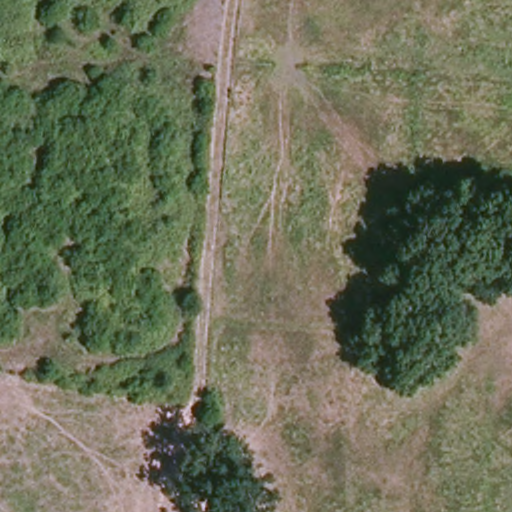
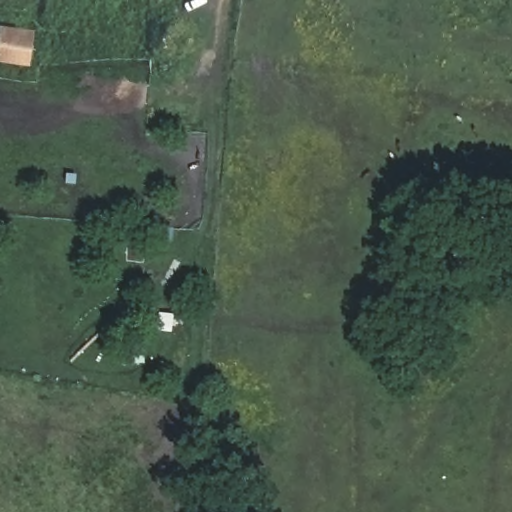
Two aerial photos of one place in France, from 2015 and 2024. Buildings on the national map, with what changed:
new [(0,24),(36,30),(31,65),(0,60),(0,24)]

